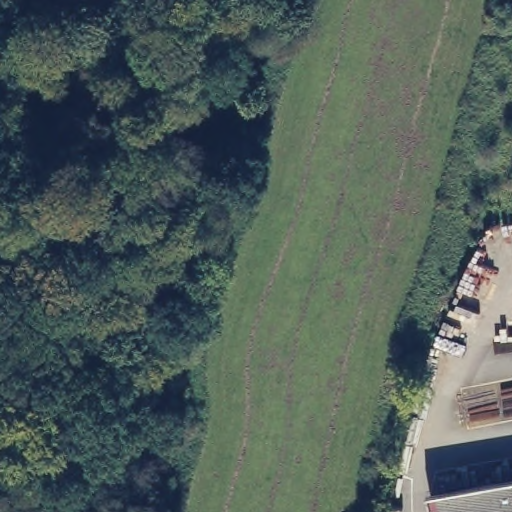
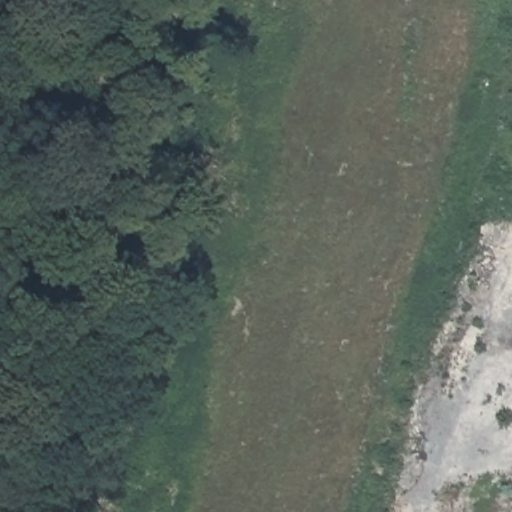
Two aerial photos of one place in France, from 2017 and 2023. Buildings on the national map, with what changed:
demolished [(512,476),(512,512),(472,512),(476,482),(512,476)]
demolished [(476,482),(472,512),(449,512),(445,487),(476,482)]

